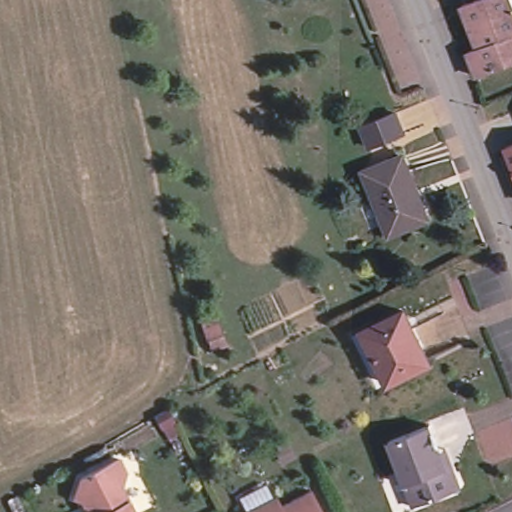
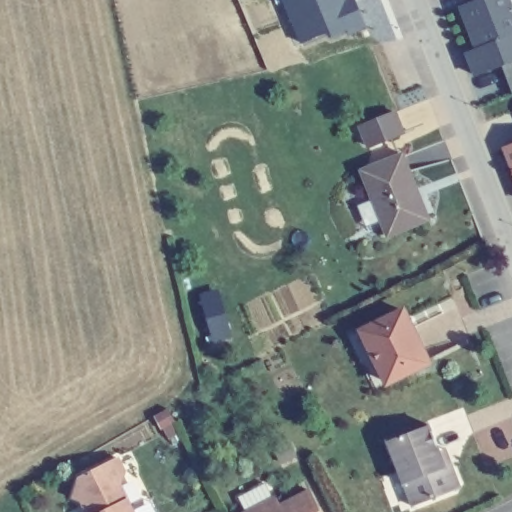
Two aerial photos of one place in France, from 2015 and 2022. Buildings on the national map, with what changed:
new [(329,40),(326,32),(299,41),(282,0),(353,0),(362,25),(329,40)]
unchanged [(465,55),(475,51),(467,31),(459,11),(483,1),(484,0),(508,0),(512,10),(512,63),(474,79),(465,55)]
unchanged [(484,0),(483,1),(483,0),(484,0)]
unchanged [(404,137),(370,151),(361,132),(395,118),(404,137)]
unchanged [(512,147),(512,168),(505,150),(512,147)]
unchanged [(404,158),(430,224),(389,241),(364,174),(404,158)]
unchanged [(433,359),(391,379),(367,328),(408,307),(433,359)]
unchanged [(412,503),(387,437),(428,421),(437,447),(445,445),(453,464),(460,484),(412,503)]
unchanged [(287,446),(293,458),(284,463),(277,451),(287,446)]
unchanged [(77,499),(75,495),(80,479),(115,461),(123,477),(118,484),(132,512),(85,512),(79,499),(77,499)]
unchanged [(244,499),(270,486),(277,501),(280,499),(285,507),(314,493),(323,512),(250,512),(244,499)]

